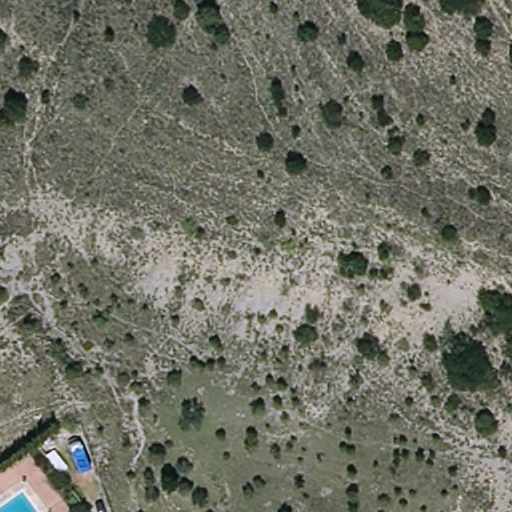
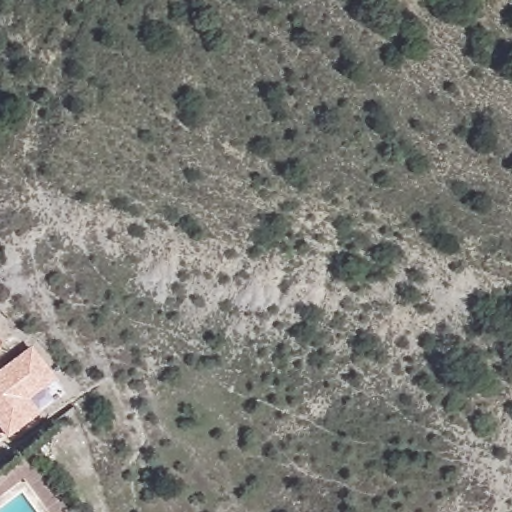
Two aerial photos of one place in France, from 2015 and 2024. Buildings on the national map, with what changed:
new [(32,346),(57,379),(30,399),(41,413),(8,438),(0,429),(0,370),(32,346)]
new [(1,348),(0,349),(0,348),(1,348)]

